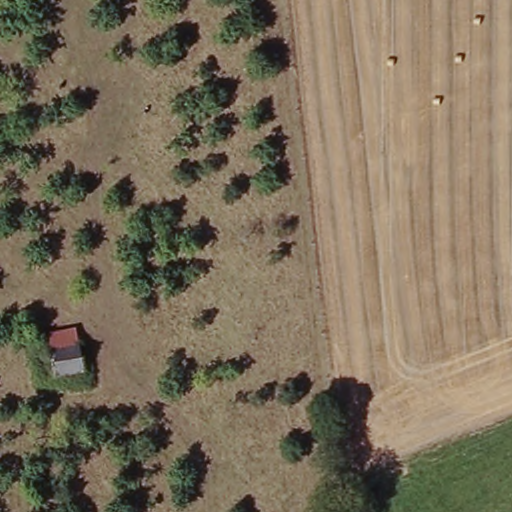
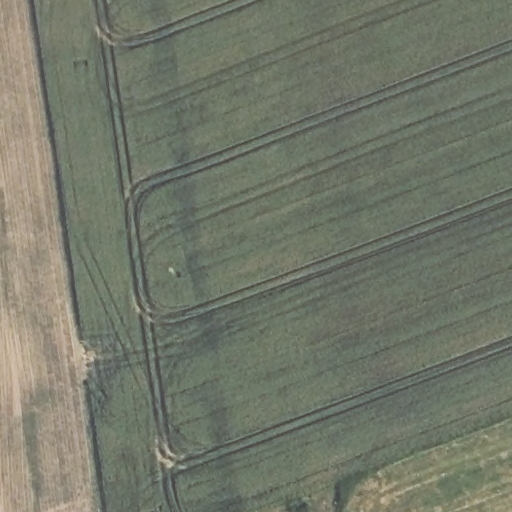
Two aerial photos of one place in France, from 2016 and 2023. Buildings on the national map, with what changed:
unchanged [(79,329),(85,375),(55,377),(47,335),(79,329)]

